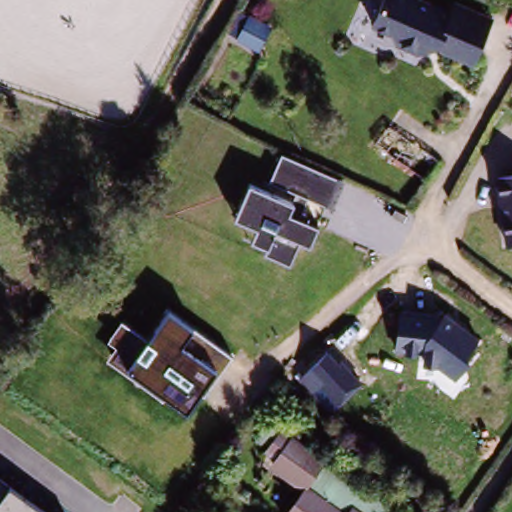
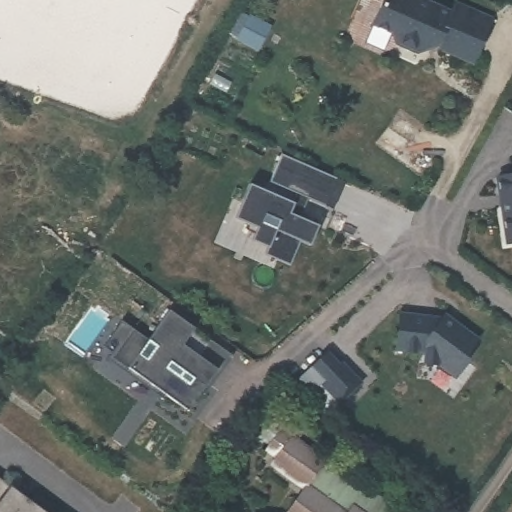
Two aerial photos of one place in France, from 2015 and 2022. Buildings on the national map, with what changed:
unchanged [(436,47),(434,39),(423,40),(424,45),(408,46),(389,37),(386,25),(366,15),(374,0),(422,0),(446,12),(449,6),(451,2),(486,20),(484,24),(464,62),(436,47)]
unchanged [(446,155),(432,174),(381,139),(396,120),(446,155)]
unchanged [(344,180),(333,206),(309,196),(301,216),(320,224),(309,246),(300,240),(289,265),(264,255),(268,247),(252,240),(258,227),(235,217),(249,185),(283,200),(289,189),(271,180),(284,153),(344,180)]
unchanged [(512,174),(512,243),(506,244),(497,176),(512,174)]
unchanged [(191,326),(229,353),(218,366),(186,409),(131,371),(108,358),(116,348),(108,341),(122,322),(150,336),(169,311),(191,326)]
unchanged [(454,376),(420,355),(397,355),(401,311),(449,313),(481,337),(454,376)]
unchanged [(327,353),(363,383),(332,415),(296,380),(327,353)]
unchanged [(389,512),(288,512),(306,486),(274,462),(276,457),(266,450),(281,427),(288,419),(305,431),(299,440),(326,460),(323,466),(365,496),(369,491),(392,507),(389,512)]
unchanged [(46,512),(0,512),(0,480),(8,486),(46,512)]

